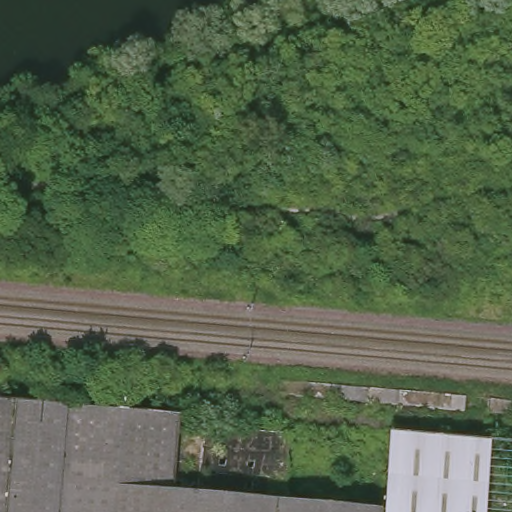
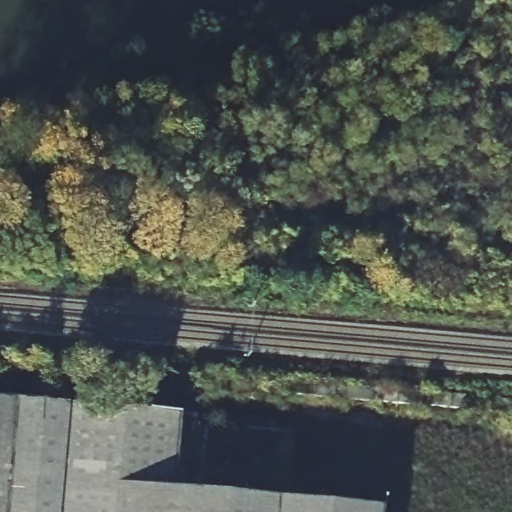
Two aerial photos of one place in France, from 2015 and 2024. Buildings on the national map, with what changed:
unchanged [(11,394),(177,409),(176,421),(170,492),(282,501),(375,507),(374,512),(1,512),(11,399),(11,394)]
unchanged [(11,399),(1,512),(0,512),(0,398),(11,399)]
demolished [(375,507),(385,429),(485,439),(480,512),(374,512),(375,507)]

